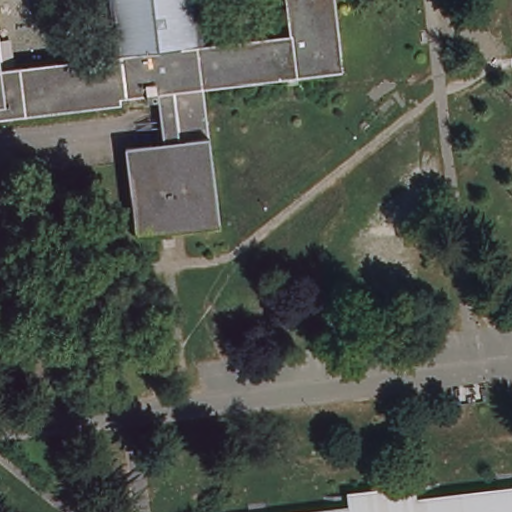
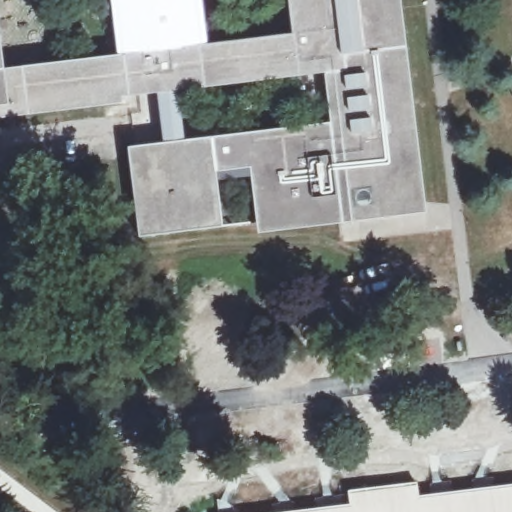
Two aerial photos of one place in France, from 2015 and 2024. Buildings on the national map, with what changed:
unchanged [(339,68),(167,90),(175,140),(202,136),(212,226),(177,230),(147,235),(130,236),(120,145),(157,141),(152,98),(142,99),(141,92),(124,95),(115,96),(115,102),(0,116),(0,65),(112,52),(106,0),(189,0),(194,41),(285,30),(281,0),(330,0),(339,68)]
new [(250,168),(207,175),(202,136),(332,125),(327,70),(339,68),(330,0),(401,0),(407,49),(427,214),(260,232),(250,168)]
unchanged [(340,493),(407,485),(409,498),(512,487),(512,512),(288,512),(341,505),(340,493)]

